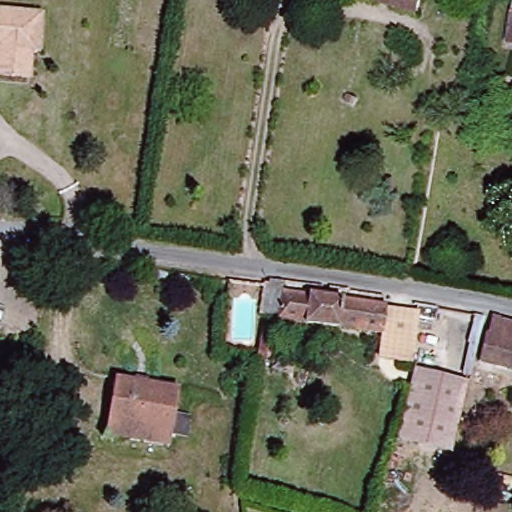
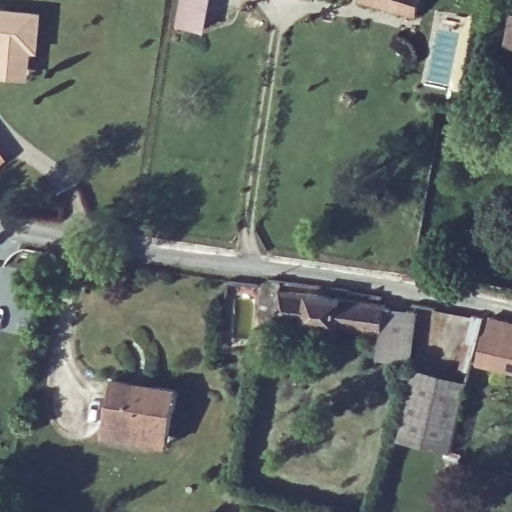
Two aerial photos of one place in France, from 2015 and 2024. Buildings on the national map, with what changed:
new [(212,0),(206,32),(175,26),(180,0),(212,0)]
unchanged [(343,0),(456,0),(451,21),(342,2),(343,0)]
unchanged [(505,40),(512,0),(512,41),(505,40)]
unchanged [(0,9),(37,12),(36,50),(26,51),(26,62),(26,74),(0,72),(0,9)]
unchanged [(390,308),(384,338),(281,319),(287,287),(390,308)]
unchanged [(512,328),(512,367),(475,359),(483,321),(512,328)]
unchanged [(271,357),(260,354),(265,327),(277,330),(271,357)]
unchanged [(470,380),(452,452),(395,441),(413,366),(470,380)]
unchanged [(114,378),(175,387),(170,413),(190,417),(187,437),(166,433),(106,423),(114,378)]
unchanged [(166,433),(162,452),(102,441),(106,423),(166,433)]

